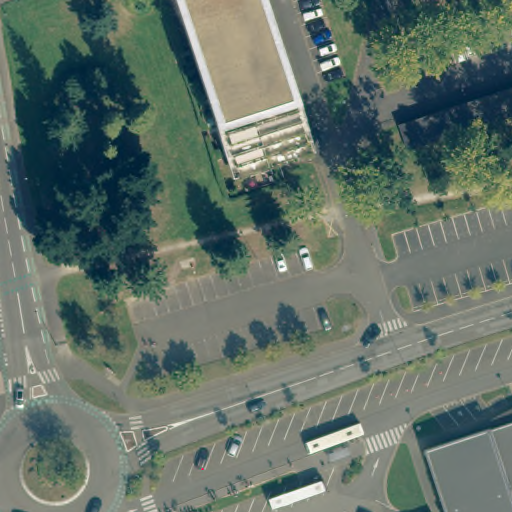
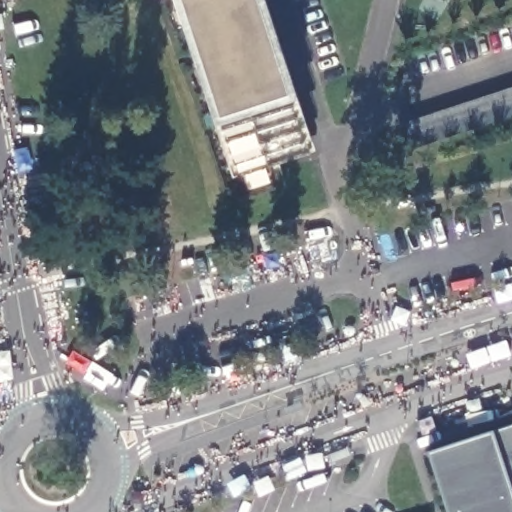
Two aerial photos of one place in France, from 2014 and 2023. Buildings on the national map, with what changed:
unchanged [(305,149),(237,172),(180,0),(257,0),(305,149)]
unchanged [(400,120),(512,85),(512,114),(407,147),(400,120)]
unchanged [(487,425),(512,412),(512,512),(447,512),(428,454),(490,434),(487,425)]

